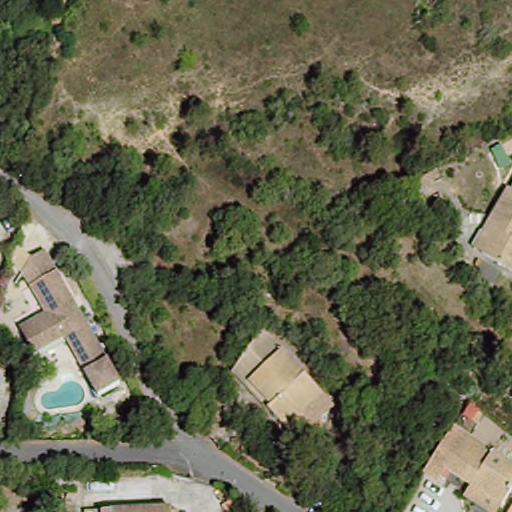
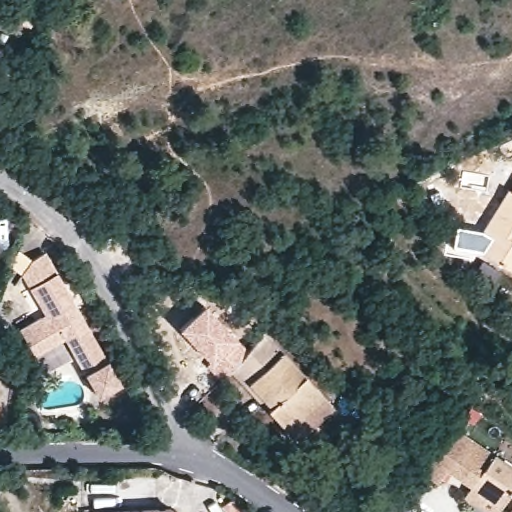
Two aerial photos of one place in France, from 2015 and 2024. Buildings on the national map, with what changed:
unchanged [(481,240),(506,194),(510,195),(512,193),(512,273),(484,256),(474,251),(481,240)]
unchanged [(99,395),(86,373),(66,338),(35,355),(21,327),(48,315),(25,275),(10,264),(16,249),(32,259),(45,250),(108,360),(121,383),(99,395)]
new [(236,337),(250,351),(221,380),(205,365),(208,361),(178,330),(203,305),(236,337)]
unchanged [(266,336),(350,412),(316,449),(235,374),(266,336)]
unchanged [(467,490),(474,481),(449,464),(439,477),(427,467),(443,444),(458,452),(472,432),(512,459),(512,494),(507,502),(500,512),(496,512),(467,490)]
unchanged [(168,510),(169,512),(113,512),(113,508),(168,506),(168,510)]
unchanged [(107,508),(113,508),(113,512),(107,512),(107,508)]
unchanged [(168,510),(174,510),(174,512),(169,512),(168,510)]
new [(512,511),(512,512),(511,512),(512,511)]

